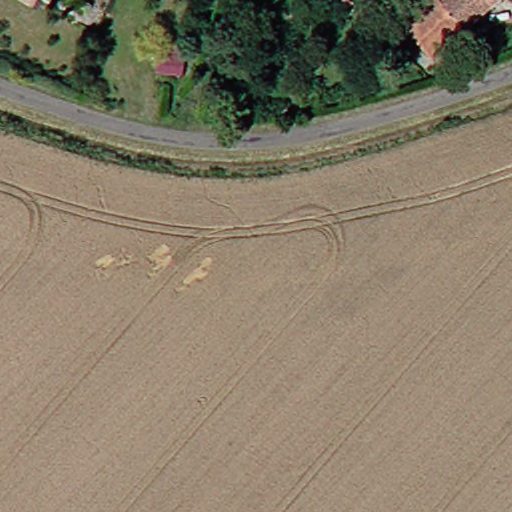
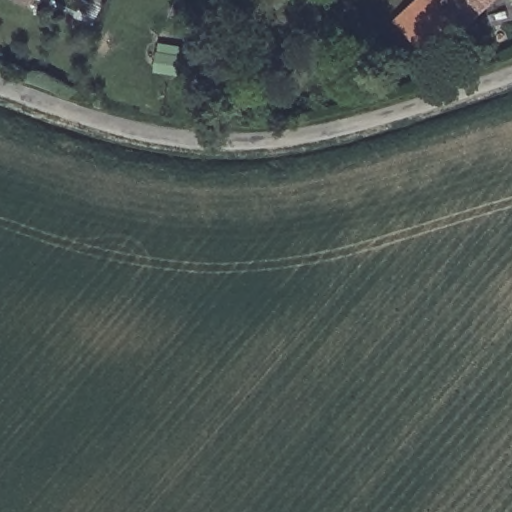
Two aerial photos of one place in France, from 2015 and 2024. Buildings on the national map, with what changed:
unchanged [(501,0),(438,56),(408,20),(430,0),(501,0)]
unchanged [(151,52),(180,55),(178,74),(150,71),(151,52)]

